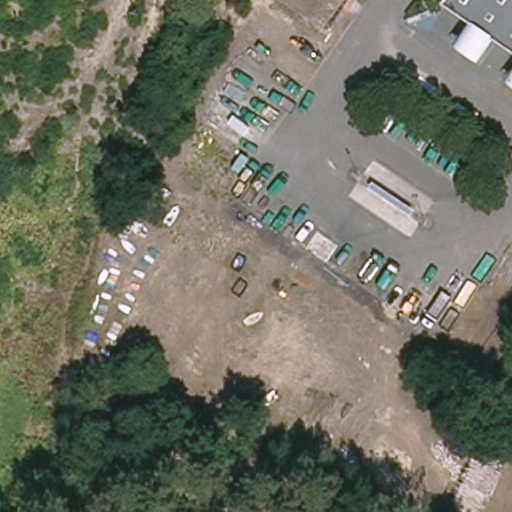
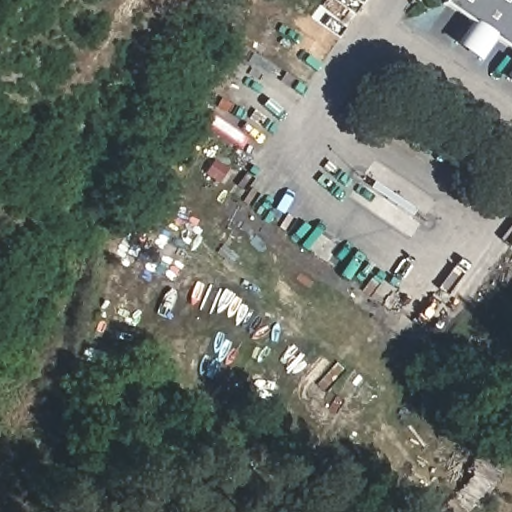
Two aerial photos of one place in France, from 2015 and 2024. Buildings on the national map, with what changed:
unchanged [(512,52),(443,4),(446,0),(512,0),(512,52)]

